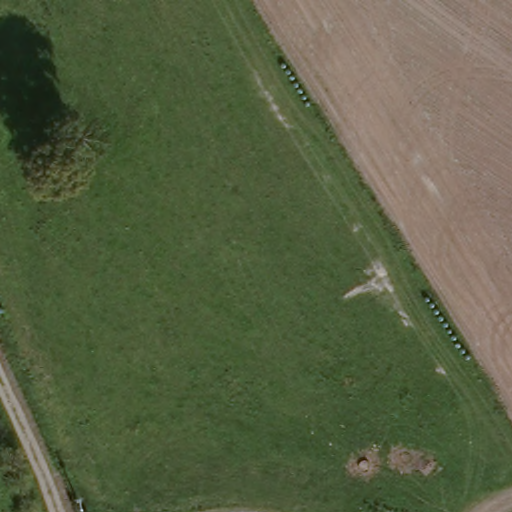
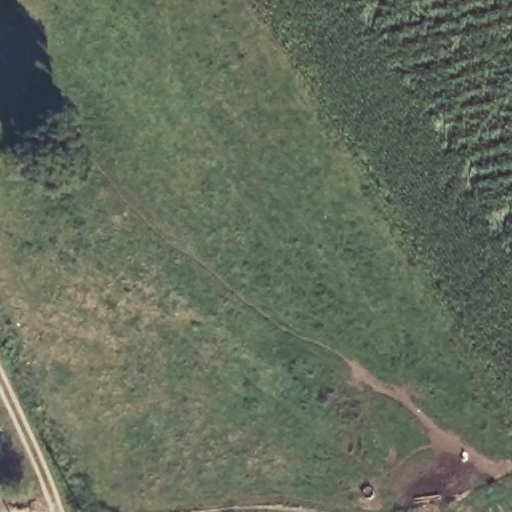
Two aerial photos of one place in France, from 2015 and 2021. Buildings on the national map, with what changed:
[]

